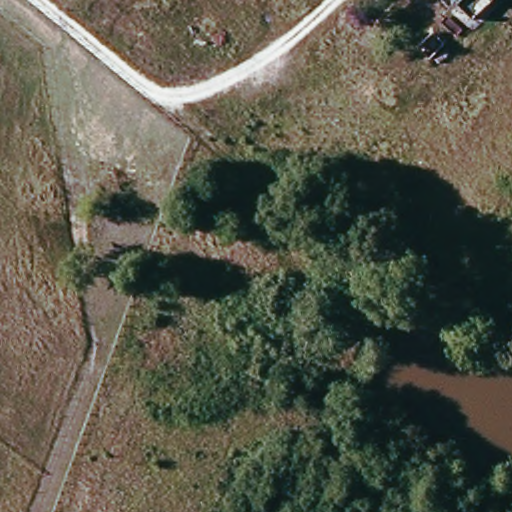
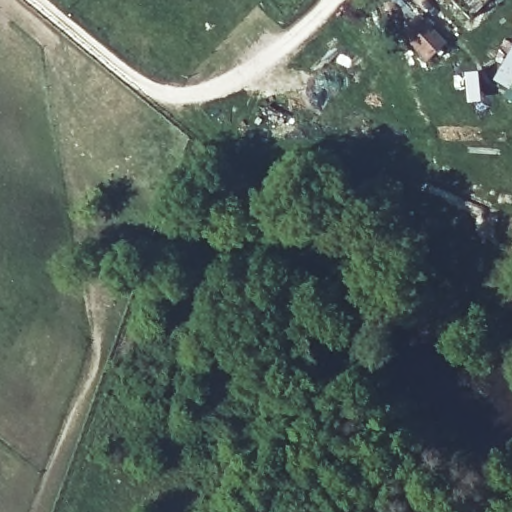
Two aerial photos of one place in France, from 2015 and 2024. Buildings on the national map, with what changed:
unchanged [(450,0),(483,0),(465,15),(450,0)]
unchanged [(437,40),(450,53),(427,76),(413,64),(437,40)]
new [(512,47),(512,91),(492,80),(512,47)]

